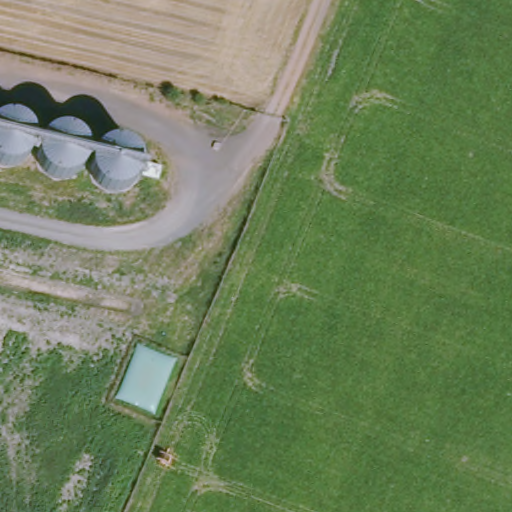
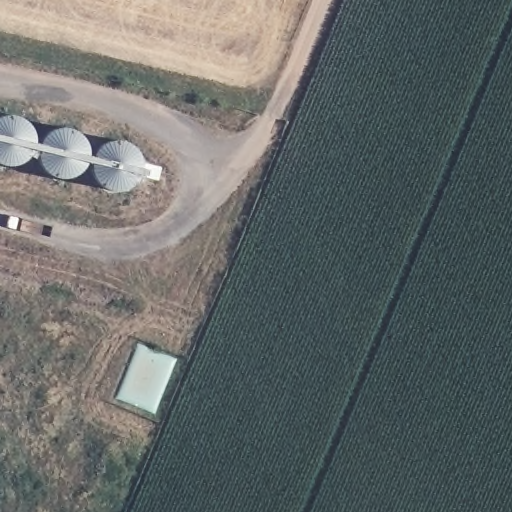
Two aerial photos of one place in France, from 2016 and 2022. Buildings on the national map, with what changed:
unchanged [(17,165),(0,163),(0,114),(15,114),(24,117),(35,131),(35,144),(29,156),(17,165)]
unchanged [(42,133),(57,124),(73,126),(83,136),(87,146),(83,160),(77,169),(62,176),(45,171),(35,159),(35,144),(42,133)]
unchanged [(131,180),(113,190),(102,186),(91,178),(85,165),(86,155),(93,144),(105,136),(117,137),(129,144),(135,155),(137,172),(131,180)]
unchanged [(145,180),(148,162),(170,167),(166,184),(145,180)]

